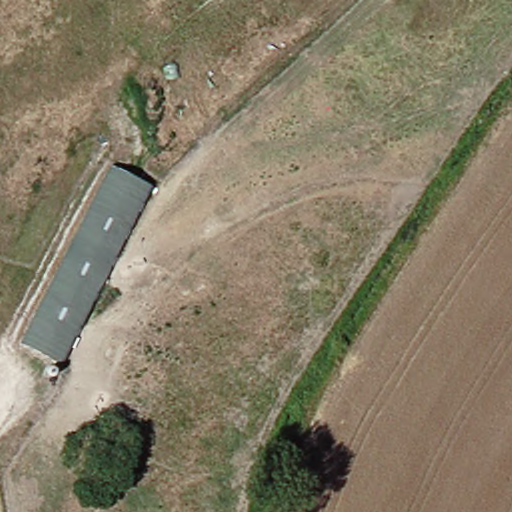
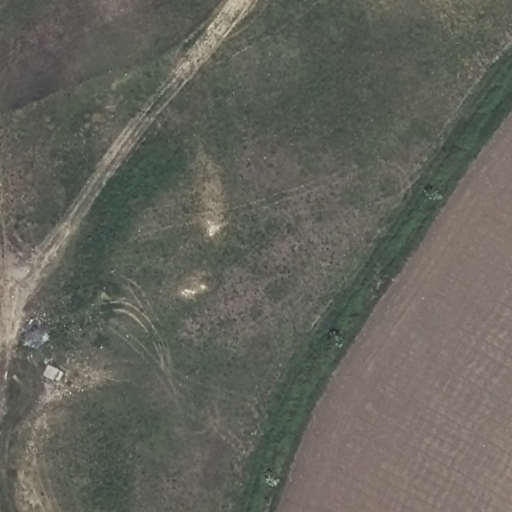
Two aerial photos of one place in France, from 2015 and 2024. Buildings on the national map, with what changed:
demolished [(116,169),(153,186),(69,365),(26,347),(116,169)]

